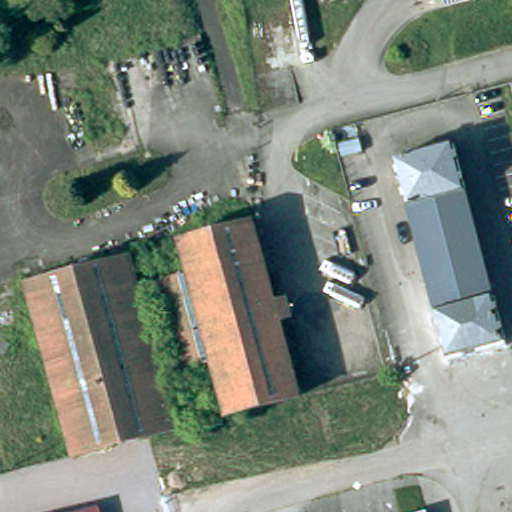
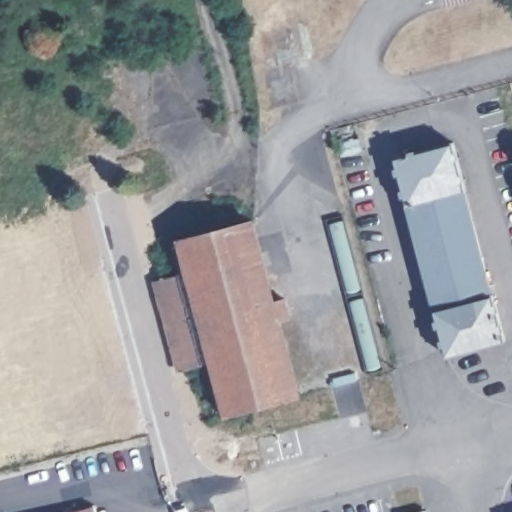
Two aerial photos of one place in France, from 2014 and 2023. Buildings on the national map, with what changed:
unchanged [(442,0),(465,0),(443,5),(442,0)]
unchanged [(400,160),(460,145),(512,345),(452,360),(400,160)]
unchanged [(213,360),(180,368),(157,281),(188,272),(180,240),(255,220),(276,301),(288,297),(292,315),(282,318),(301,393),(227,413),(213,360)]
demolished [(25,280),(129,252),(177,426),(150,433),(73,454),(25,280)]
unchanged [(96,506),(98,512),(73,512),(96,506)]
unchanged [(422,511),(422,512),(420,512),(422,511)]

